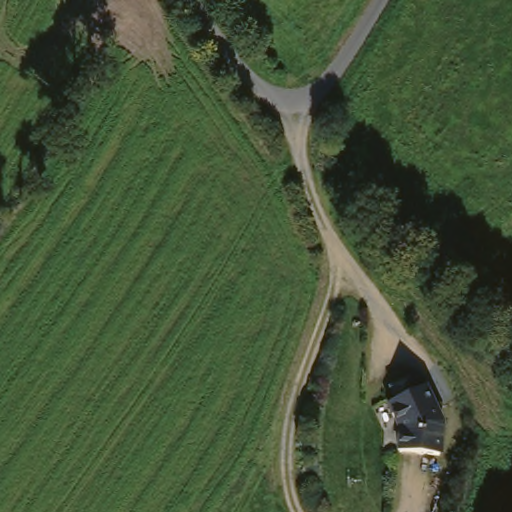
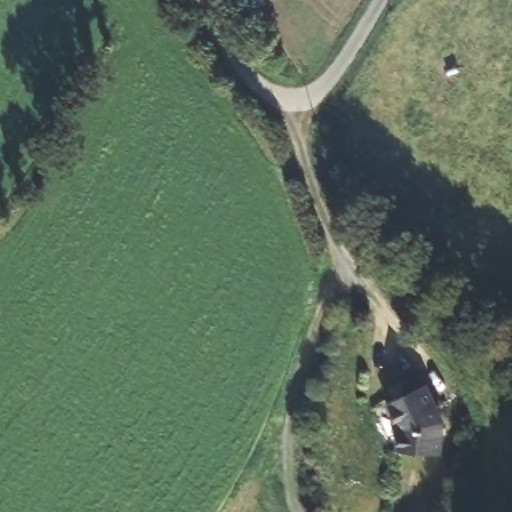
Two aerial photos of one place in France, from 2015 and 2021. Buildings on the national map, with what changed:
unchanged [(411,366),(417,378),(427,372),(446,408),(445,441),(403,440),(403,418),(390,392),(398,388),(392,376),(411,366)]

